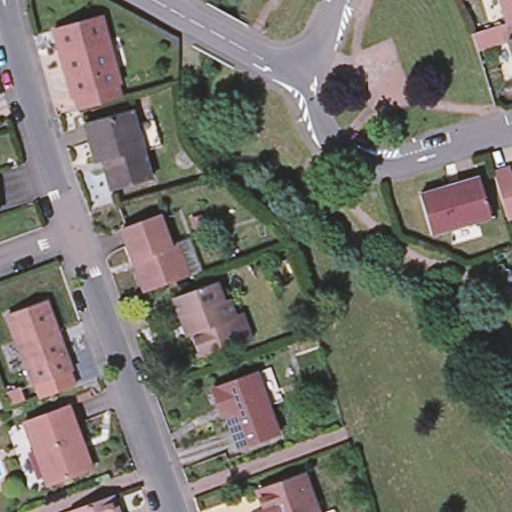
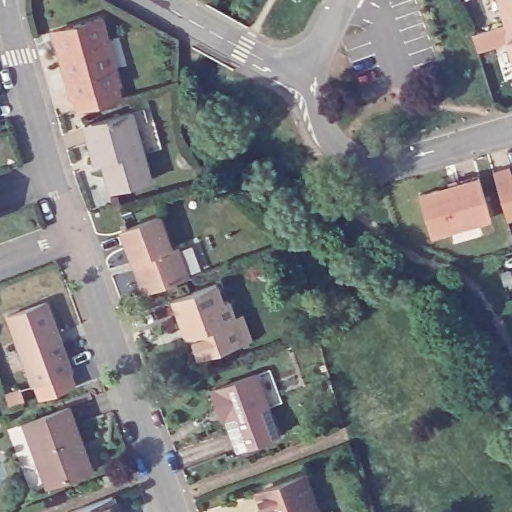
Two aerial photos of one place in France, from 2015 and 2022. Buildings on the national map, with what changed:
unchanged [(512,0),(512,24),(504,0),(512,0)]
unchanged [(98,12),(104,36),(93,39),(100,66),(112,63),(116,78),(72,90),(68,74),(63,75),(50,25),(98,12)]
unchanged [(512,24),(512,32),(510,24),(512,24)]
unchanged [(147,174),(107,185),(98,155),(92,157),(81,120),(88,118),(128,106),(147,174)]
unchanged [(512,180),(512,222),(507,223),(493,176),(510,171),(512,180)]
unchanged [(429,236),(418,196),(477,179),(489,218),(429,236)]
unchanged [(159,236),(174,230),(188,269),(138,287),(129,262),(131,261),(128,251),(122,254),(110,221),(149,207),(159,236)]
unchanged [(218,280),(224,298),(230,296),(236,313),(234,320),(240,338),(203,351),(198,346),(194,332),(193,323),(190,314),(184,316),(177,294),(218,280)]
unchanged [(38,295),(63,364),(24,378),(0,310),(0,309),(38,295)]
unchanged [(253,369),(275,432),(233,446),(219,405),(213,407),(206,386),(253,369)]
unchanged [(82,466),(46,479),(23,415),(66,400),(78,433),(89,464),(82,466)]
unchanged [(299,471),(314,511),(312,512),(252,512),(251,509),(258,506),(252,488),(299,471)]
unchanged [(63,507),(108,491),(114,508),(115,512),(65,512),(63,507)]

